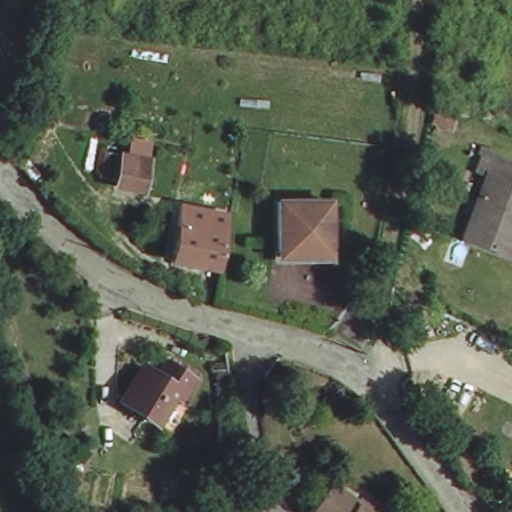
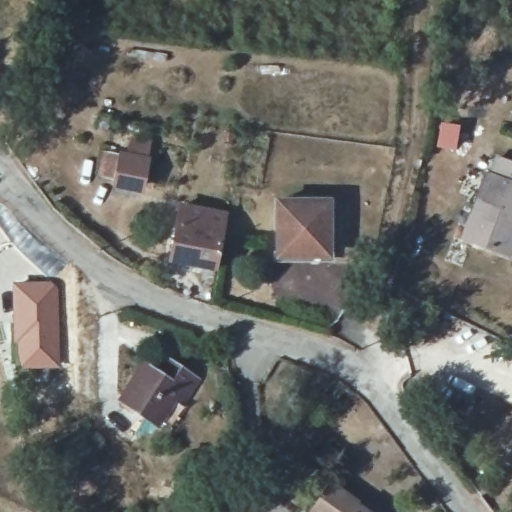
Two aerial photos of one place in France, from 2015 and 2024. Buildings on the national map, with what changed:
unchanged [(484,171),(490,173),(497,151),(512,157),(512,242),(510,250),(464,235),(484,171)]
unchanged [(118,180),(125,154),(149,159),(144,186),(118,180)]
unchanged [(285,197),(335,202),(333,253),(281,250),(285,197)]
unchanged [(174,253),(181,216),(188,218),(191,206),(231,214),(222,262),(174,253)]
new [(57,280),(60,309),(60,367),(18,368),(13,335),(12,282),(57,280)]
unchanged [(144,364),(158,374),(171,357),(199,376),(180,403),(173,398),(153,424),(120,397),(144,364)]
unchanged [(361,505),(358,510),(360,512),(314,512),(333,485),(361,505)]
unchanged [(382,512),(379,512),(380,510),(382,512)]

